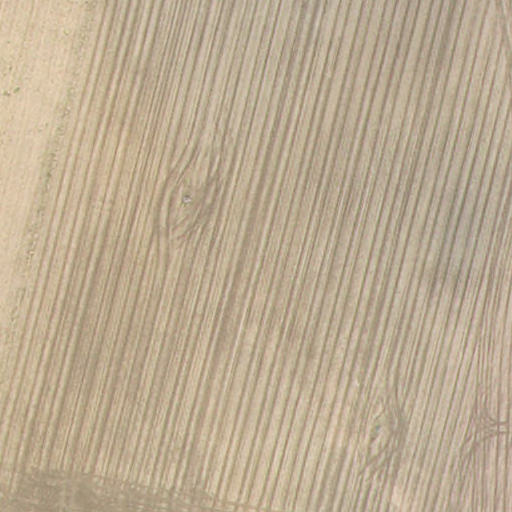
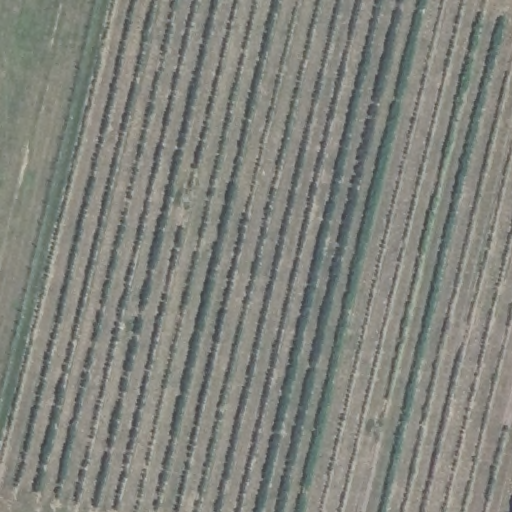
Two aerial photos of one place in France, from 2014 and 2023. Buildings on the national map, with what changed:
[]

